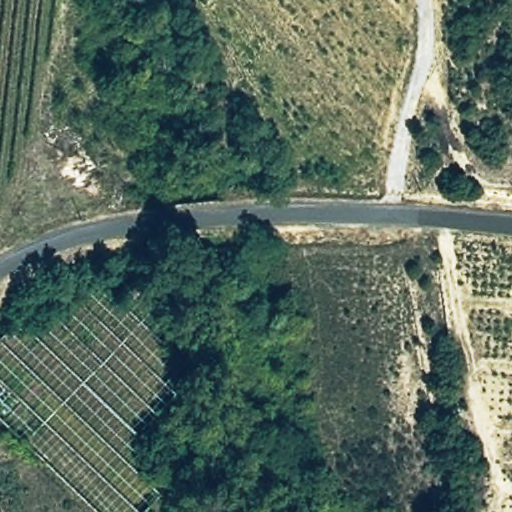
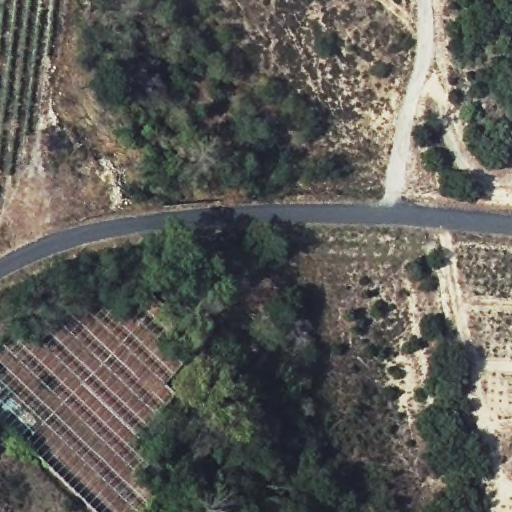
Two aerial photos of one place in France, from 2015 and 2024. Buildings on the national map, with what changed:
unchanged [(0,420),(0,336),(17,317),(30,327),(65,290),(78,300),(96,281),(117,301),(138,280),(188,332),(172,435),(141,471),(162,494),(144,512),(95,512),(0,420)]

